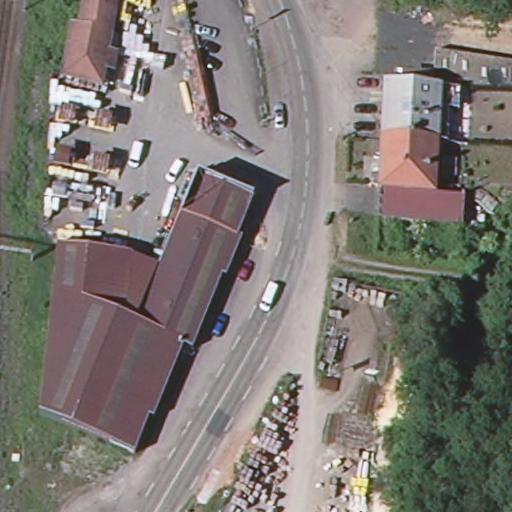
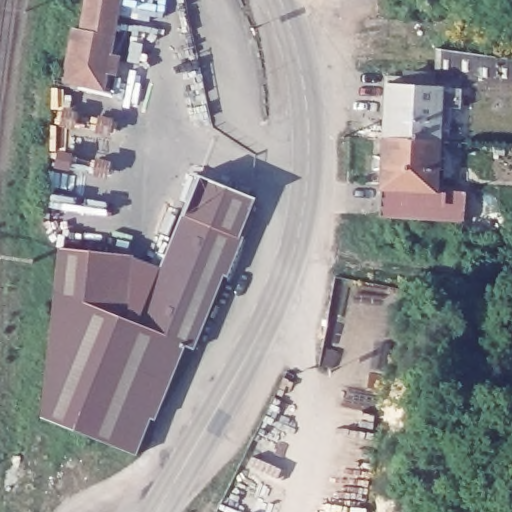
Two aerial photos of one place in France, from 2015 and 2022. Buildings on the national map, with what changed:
unchanged [(111,41),(81,36),(92,0),(118,0),(111,41)]
unchanged [(74,35),(81,36),(111,41),(103,95),(65,89),(74,35)]
unchanged [(439,80),(440,46),(512,61),(512,88),(439,80)]
unchanged [(439,137),(384,135),(387,100),(388,82),(442,85),(441,102),(439,137)]
unchanged [(384,135),(439,137),(436,188),(381,186),(384,135)]
unchanged [(236,240),(240,241),(224,281),(219,279),(191,351),(181,349),(151,423),(146,422),(133,458),(81,437),(66,431),(38,420),(58,254),(115,259),(123,265),(142,265),(158,271),(193,179),(196,180),(199,169),(227,180),(223,190),(251,201),(236,240)]
unchanged [(381,186),(436,188),(464,189),(464,214),(380,214),(381,186)]

